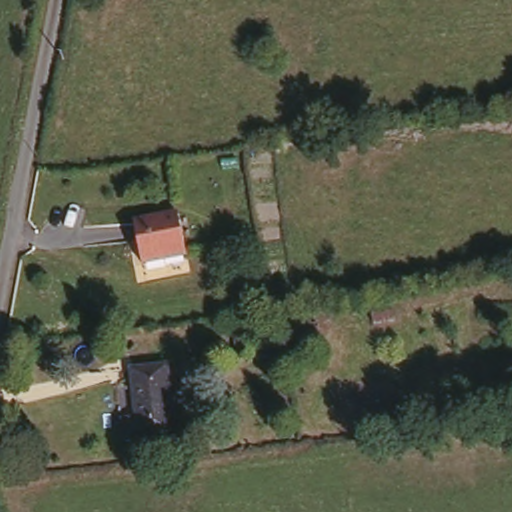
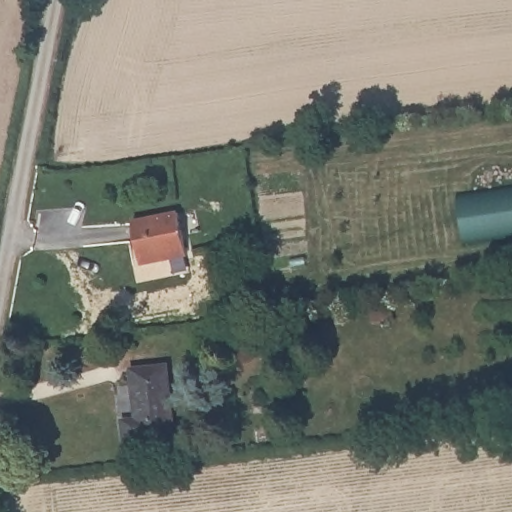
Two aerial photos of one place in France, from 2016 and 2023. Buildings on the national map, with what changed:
new [(463,242),(457,200),(512,192),(512,235),(463,242)]
unchanged [(180,201),(187,242),(145,251),(136,210),(180,201)]
unchanged [(395,306),(398,316),(376,322),(372,311),(395,306)]
unchanged [(232,323),(290,317),(307,315),(311,343),(292,345),(235,350),(232,323)]
unchanged [(171,363),(177,431),(127,438),(125,420),(140,417),(135,367),(171,363)]

